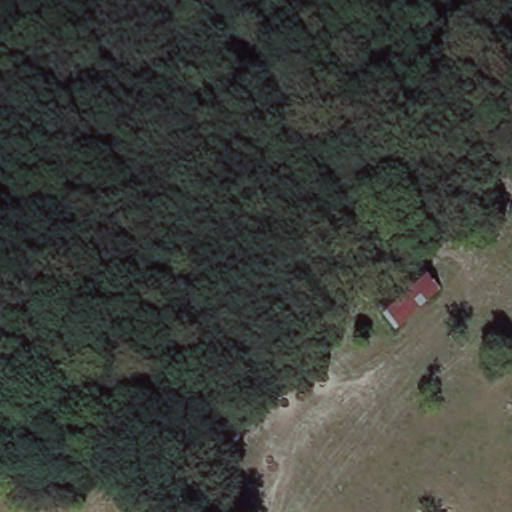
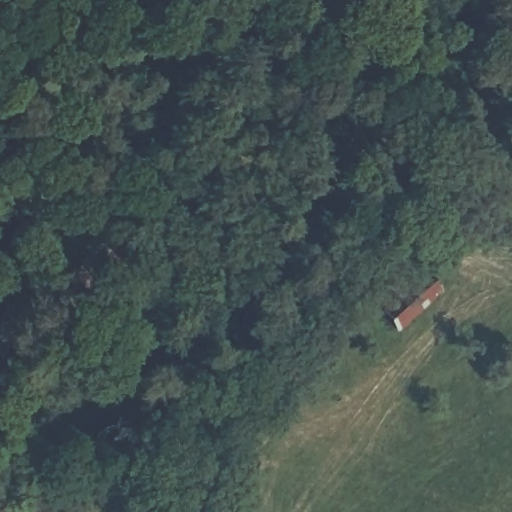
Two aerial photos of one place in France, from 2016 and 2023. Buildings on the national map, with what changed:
unchanged [(437,291),(399,326),(381,309),(421,272),(437,291)]

